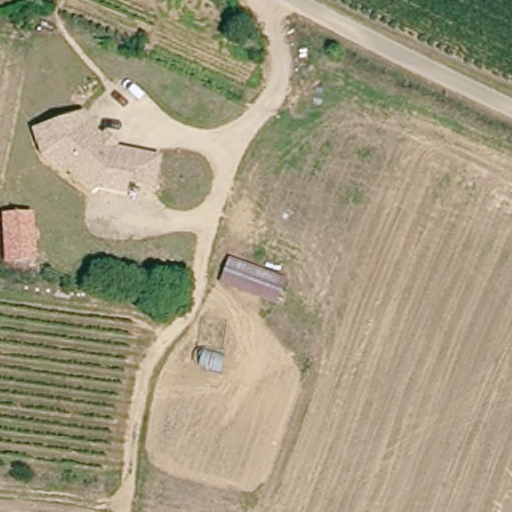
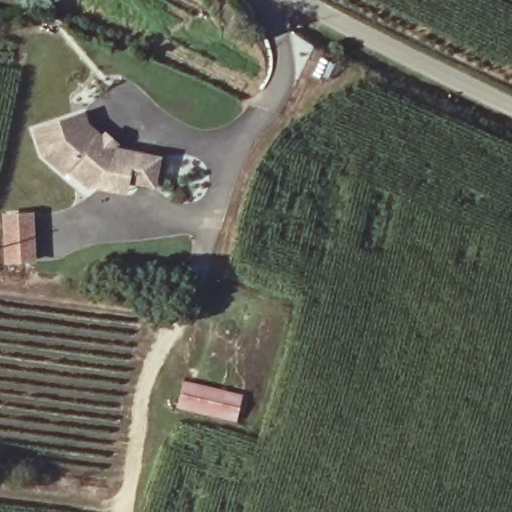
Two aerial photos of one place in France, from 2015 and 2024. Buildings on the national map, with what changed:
unchanged [(91,126),(107,142),(110,138),(119,147),(115,152),(161,164),(155,190),(109,178),(99,189),(90,188),(69,167),(65,171),(47,154),(40,130),(88,116),(91,126)]
unchanged [(3,212),(35,210),(37,259),(5,264),(3,212)]
new [(177,408),(184,379),(242,393),(235,422),(177,408)]

